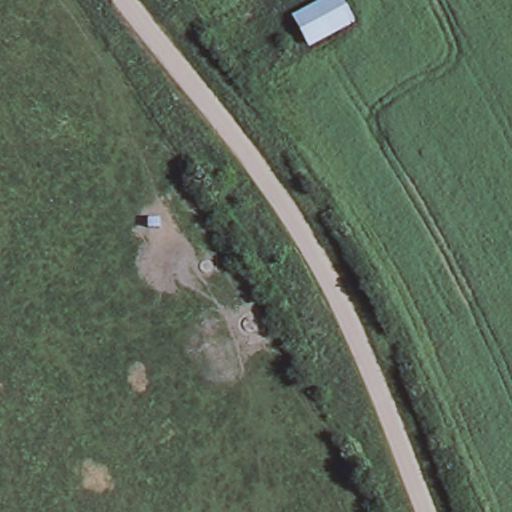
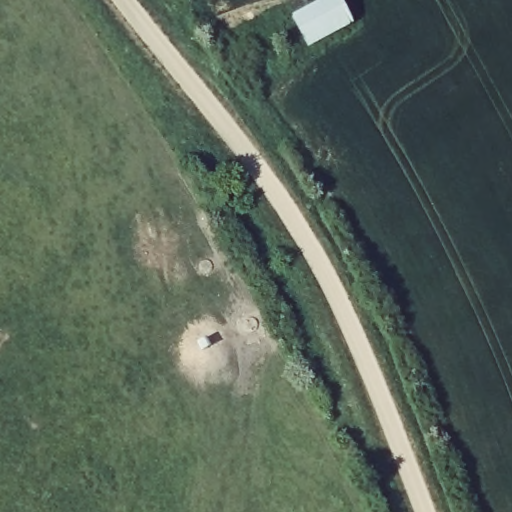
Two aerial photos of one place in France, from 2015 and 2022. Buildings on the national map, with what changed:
unchanged [(332,0),(341,0),(352,21),(308,45),(295,20),(332,0)]

